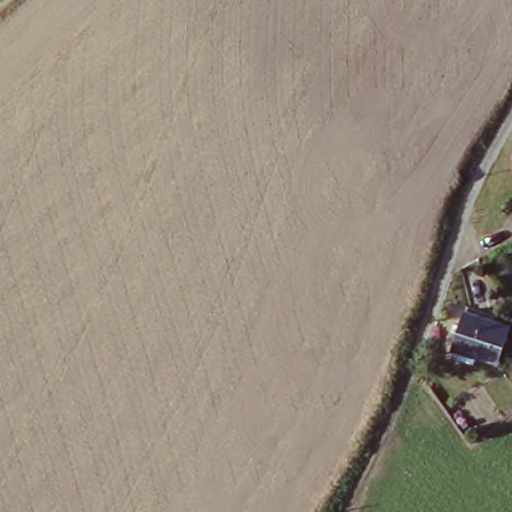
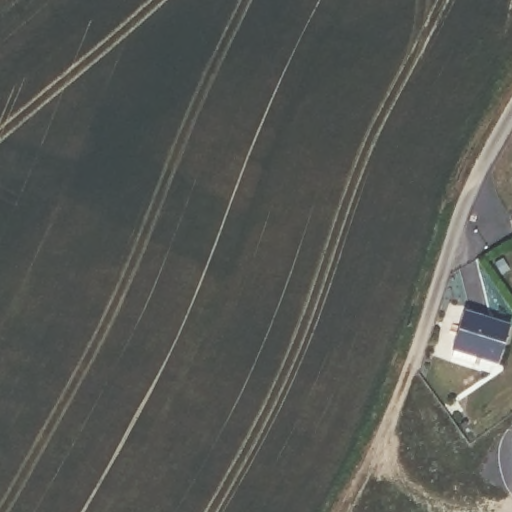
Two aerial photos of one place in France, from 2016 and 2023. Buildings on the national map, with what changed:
unchanged [(466,314),(511,328),(499,366),(454,351),(466,314)]

